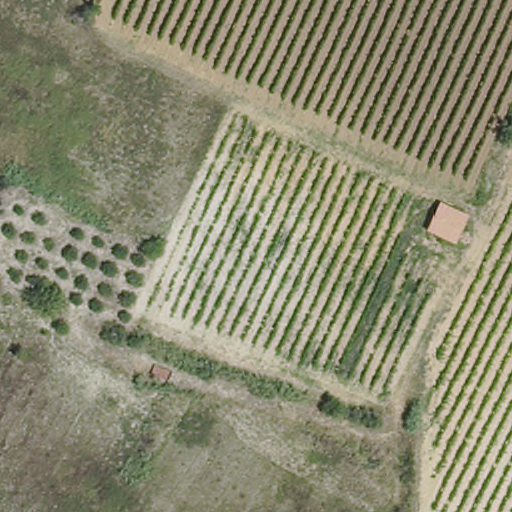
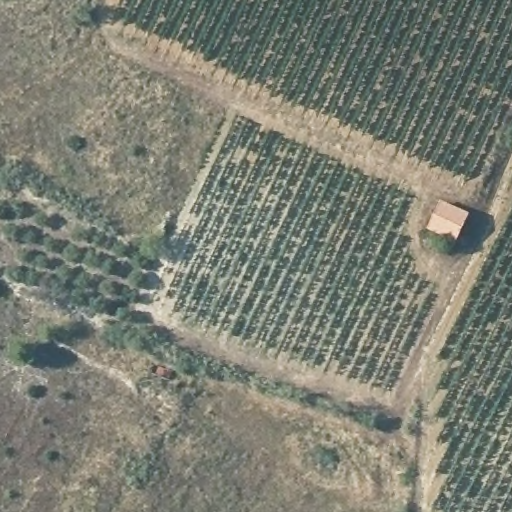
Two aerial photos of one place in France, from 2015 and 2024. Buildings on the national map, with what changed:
unchanged [(458,241),(429,227),(443,200),(471,214),(458,241)]

